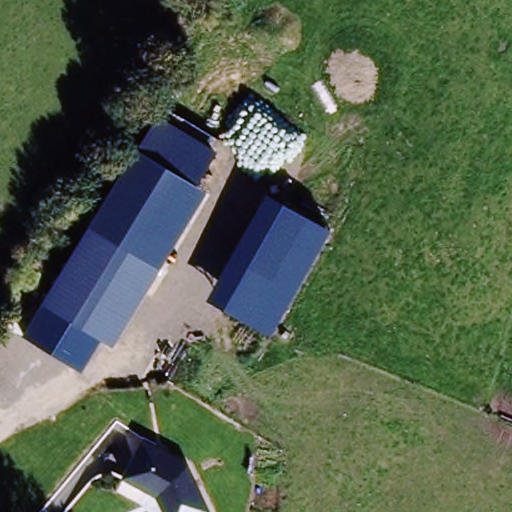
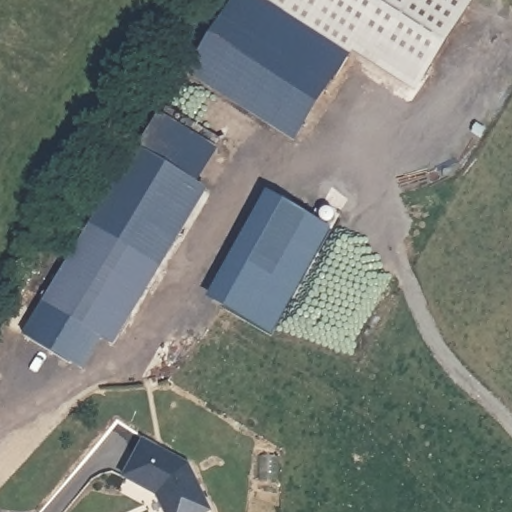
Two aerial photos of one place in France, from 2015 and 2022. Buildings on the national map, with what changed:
new [(351,54),(296,144),(187,76),(235,0),(477,0),(417,95),(351,54)]
unchanged [(215,152),(196,184),(207,193),(159,273),(90,230),(155,118),(215,152)]
unchanged [(206,300),(265,193),(330,229),(272,335),(206,300)]
unchanged [(42,307),(90,230),(159,273),(113,347),(42,307)]
unchanged [(102,340),(83,373),(23,336),(42,307),(102,340)]
unchanged [(152,500),(121,483),(139,446),(185,470),(207,512),(157,512),(152,500)]

